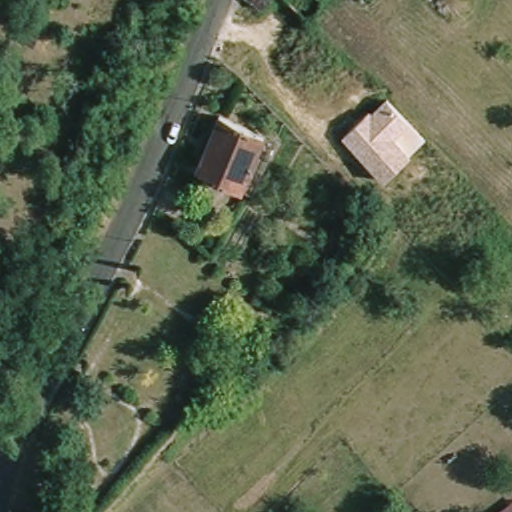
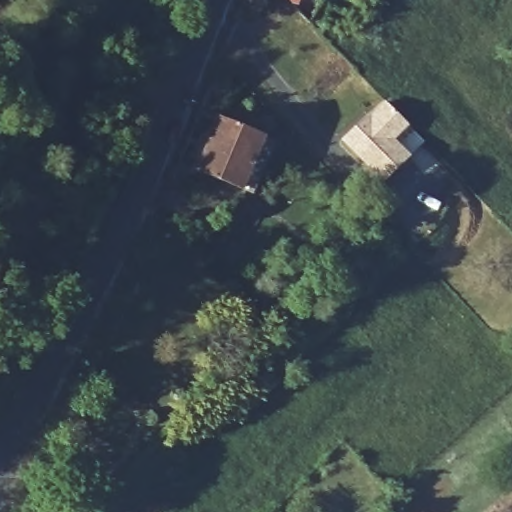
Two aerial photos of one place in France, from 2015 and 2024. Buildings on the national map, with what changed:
unchanged [(267,5),(260,1),(260,0),(269,0),(267,5)]
unchanged [(301,11),(290,0),(312,0),(301,11)]
unchanged [(409,125),(396,139),(412,155),(383,182),(342,140),(382,99),(409,125)]
unchanged [(265,134),(242,186),(196,165),(220,114),(265,134)]

